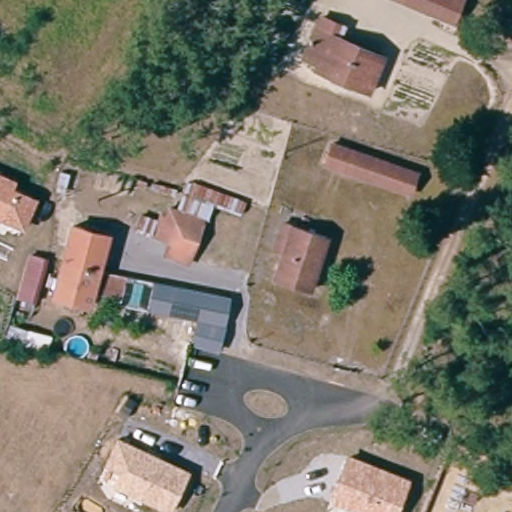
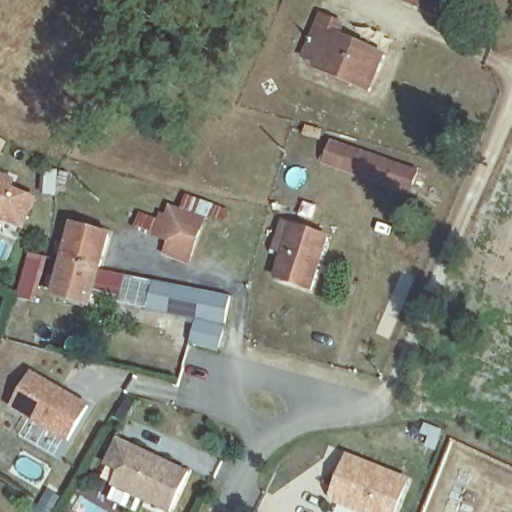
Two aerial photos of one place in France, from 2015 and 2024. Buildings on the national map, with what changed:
unchanged [(411,0),(458,0),(451,17),(411,0)]
unchanged [(316,14),(330,20),(325,32),(375,53),(361,87),(312,67),(316,60),(300,53),(316,14)]
unchanged [(405,168),(396,190),(339,169),(347,147),(405,168)]
unchanged [(14,185),(39,196),(25,229),(0,220),(0,171),(17,178),(14,185)]
unchanged [(214,208),(192,267),(162,257),(165,245),(132,231),(140,215),(156,218),(159,211),(165,212),(169,203),(179,207),(186,181),(246,200),(240,216),(214,208)]
unchanged [(50,291),(60,257),(69,226),(100,234),(92,265),(121,272),(116,291),(86,284),(82,300),(50,291)]
unchanged [(307,287),(275,276),(292,226),(325,234),(307,287)]
unchanged [(30,252),(49,257),(35,302),(15,296),(30,252)]
unchanged [(221,326),(149,309),(155,283),(227,300),(221,326)]
unchanged [(215,352),(190,344),(194,327),(220,334),(215,352)]
new [(61,386),(72,392),(90,401),(69,436),(13,403),(34,368),(61,386)]
unchanged [(111,486),(119,470),(104,463),(116,436),(191,470),(170,512),(111,486)]
unchanged [(410,478),(397,512),(358,512),(327,500),(347,452),(410,478)]

